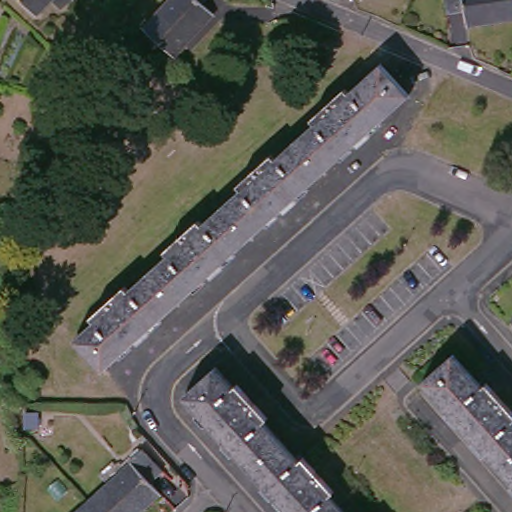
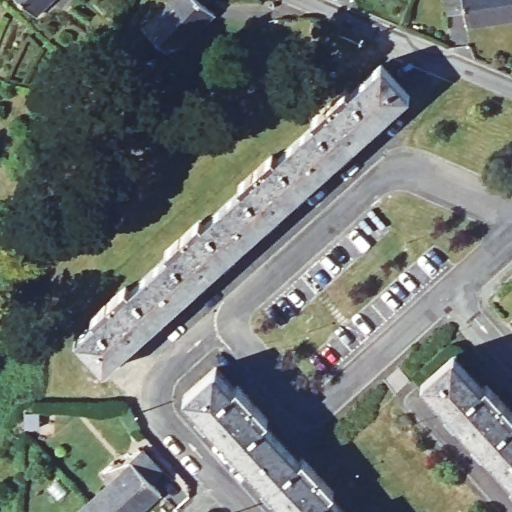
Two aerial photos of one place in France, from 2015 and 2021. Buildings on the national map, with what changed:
unchanged [(34,17),(17,0),(53,0),(34,17)]
unchanged [(216,7),(178,48),(148,21),(168,0),(210,0),(216,7)]
unchanged [(463,5),(446,8),(444,0),(512,0),(512,15),(466,22),(463,5)]
unchanged [(413,97),(107,372),(78,341),(108,314),(106,309),(129,289),(133,292),(173,256),(168,252),(191,232),(196,236),(256,182),(253,177),(276,157),(279,160),(318,126),(316,121),(339,101),(343,104),(386,67),(413,97)]
unchanged [(512,318),(512,323),(509,321),(512,318)]
unchanged [(188,371),(208,353),(226,373),(231,371),(252,394),(250,400),(261,412),(290,445),(292,447),(296,445),(327,478),(324,482),(350,512),(293,512),(177,382),(188,371)]
unchanged [(429,387),(461,362),(484,388),(453,416),(429,387)]
unchanged [(488,385),(509,409),(508,412),(512,417),(512,482),(453,416),(484,388),(488,385)]
unchanged [(129,465),(129,462),(142,450),(160,472),(148,482),(159,496),(141,512),(96,512),(86,502),(129,465)]
unchanged [(96,512),(76,512),(86,502),(96,512)]

